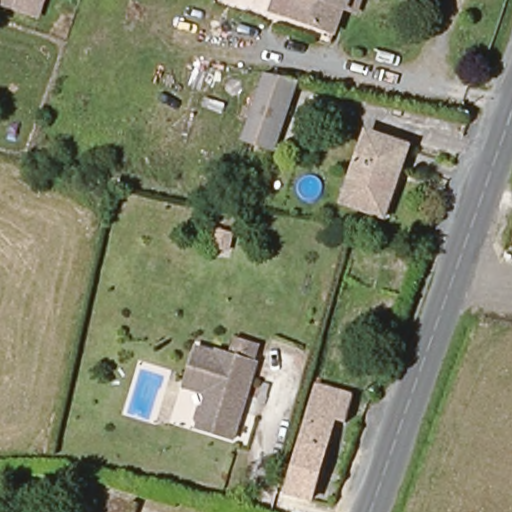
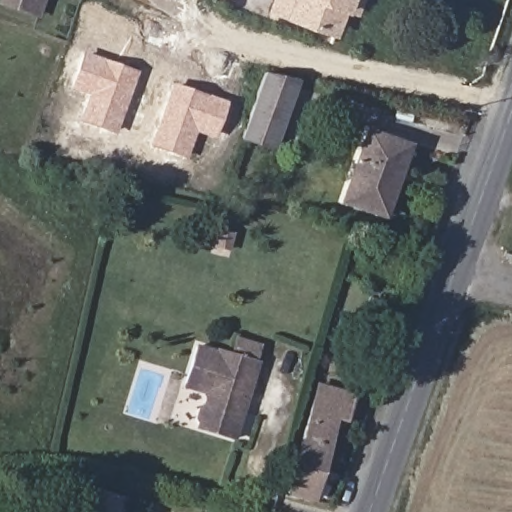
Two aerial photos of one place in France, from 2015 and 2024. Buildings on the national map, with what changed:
unchanged [(36,17),(29,15),(9,8),(0,5),(0,2),(1,0),(42,0),(36,17)]
unchanged [(359,22),(348,18),(344,17),(337,36),(292,22),(274,15),(280,0),(365,0),(359,22)]
new [(116,134),(83,123),(88,94),(70,88),(81,56),(90,59),(92,54),(138,70),(116,134)]
unchanged [(268,81),(300,89),(277,158),(244,148),(268,81)]
new [(214,137),(197,131),(187,160),(150,147),(172,82),(227,101),(214,137)]
unchanged [(409,154),(385,221),(342,208),(366,140),(409,154)]
unchanged [(235,445),(198,435),(200,422),(208,407),(205,396),(186,390),(198,350),(231,359),(235,344),(259,352),(255,366),(257,367),(235,445)]
unchanged [(319,388),(359,401),(351,430),(339,426),(316,505),(286,497),(319,388)]
new [(123,512),(88,512),(93,497),(84,494),(87,485),(127,498),(123,512)]

